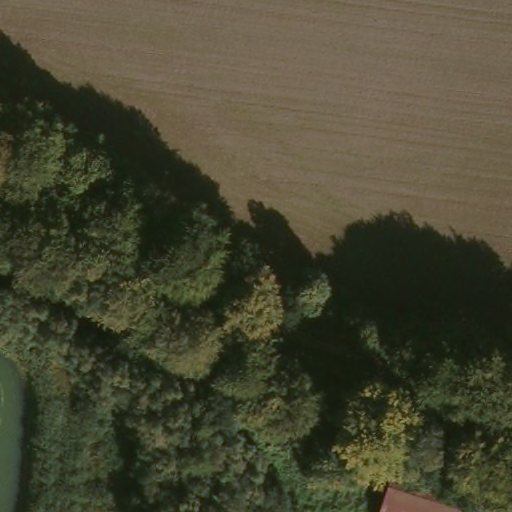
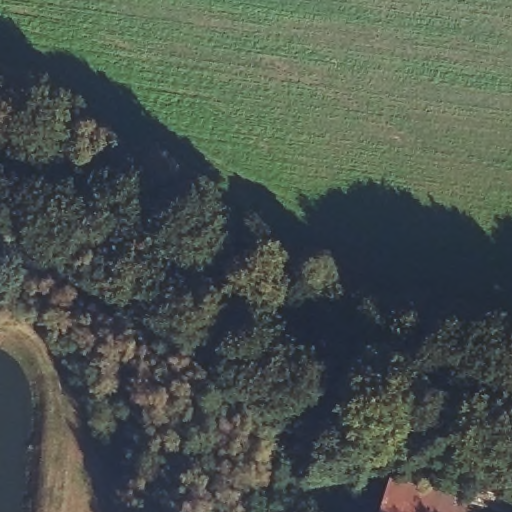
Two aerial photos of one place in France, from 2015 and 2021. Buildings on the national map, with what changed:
unchanged [(457,512),(376,512),(388,468),(463,488),(458,509),(457,512)]
unchanged [(512,512),(468,512),(458,509),(463,488),(512,500),(512,512)]

